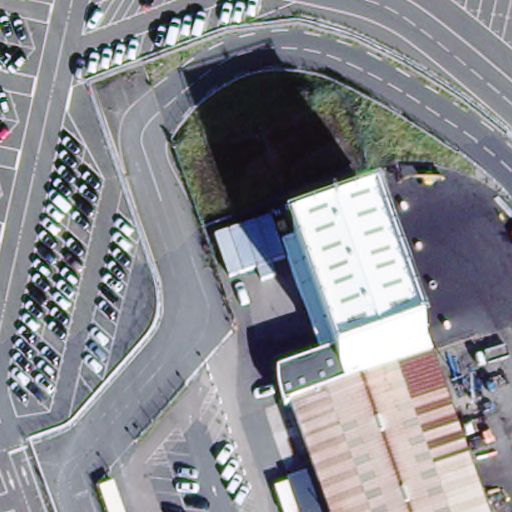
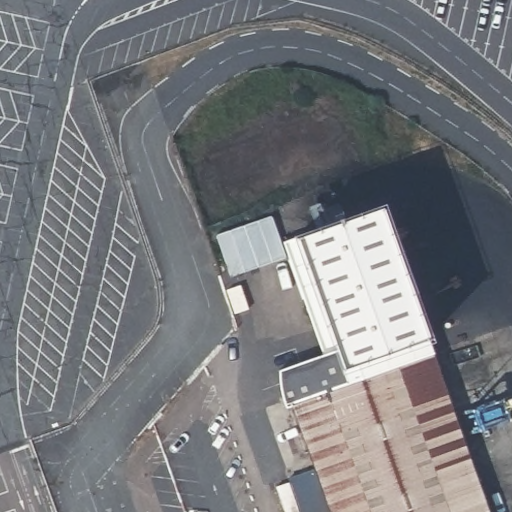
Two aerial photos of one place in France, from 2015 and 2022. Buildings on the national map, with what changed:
unchanged [(380,181),(428,322),(347,350),(298,208),(380,181)]
unchanged [(347,350),(428,322),(438,349),(295,401),(284,372),(347,350)]
unchanged [(495,512),(308,512),(295,475),(317,466),(298,409),(295,401),(438,349),(495,512)]

